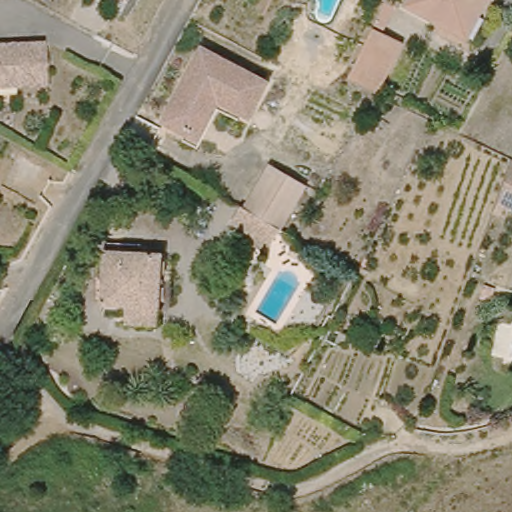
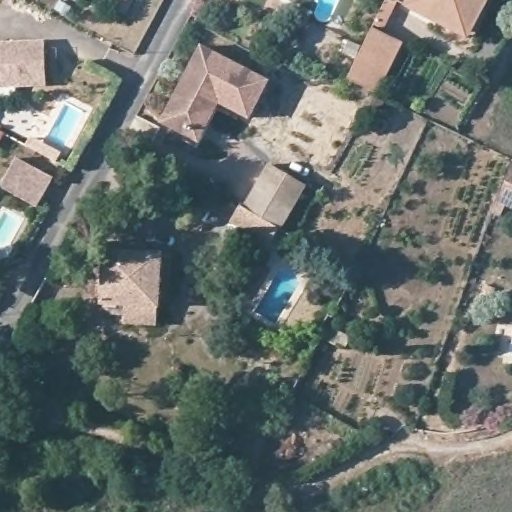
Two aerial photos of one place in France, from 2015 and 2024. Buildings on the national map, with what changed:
unchanged [(128,0),(125,5),(116,0),(128,0)]
unchanged [(407,0),(491,0),(467,37),(462,34),(407,0)]
unchanged [(398,43),(371,94),(343,79),(370,28),(398,43)]
unchanged [(44,43),(45,84),(15,85),(0,86),(0,45),(44,43)]
unchanged [(159,124),(201,48),(269,86),(248,124),(218,109),(198,146),(159,124)]
unchanged [(493,197),(507,157),(512,159),(512,206),(503,202),(498,216),(487,212),(493,197)]
new [(55,179),(38,209),(0,189),(17,158),(55,179)]
unchanged [(238,235),(242,229),(227,218),(237,201),(241,204),(267,160),(302,182),(276,225),(262,250),(248,242),(238,235)]
unchanged [(100,304),(95,303),(95,299),(97,277),(102,239),(120,240),(137,242),(136,252),(159,253),(156,300),(155,308),(154,325),(121,324),(122,317),(123,305),(100,304)]
unchanged [(353,345),(342,339),(346,330),(357,336),(353,345)]

